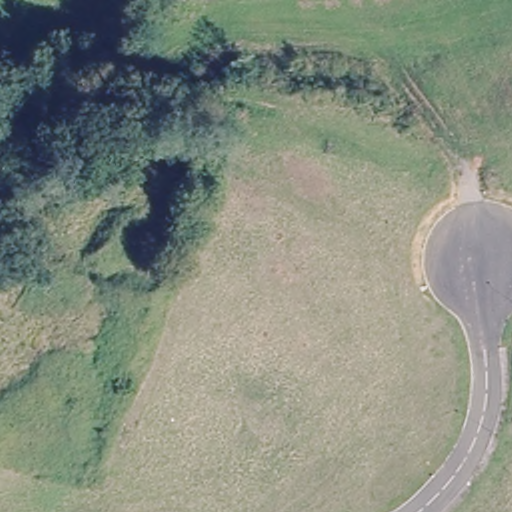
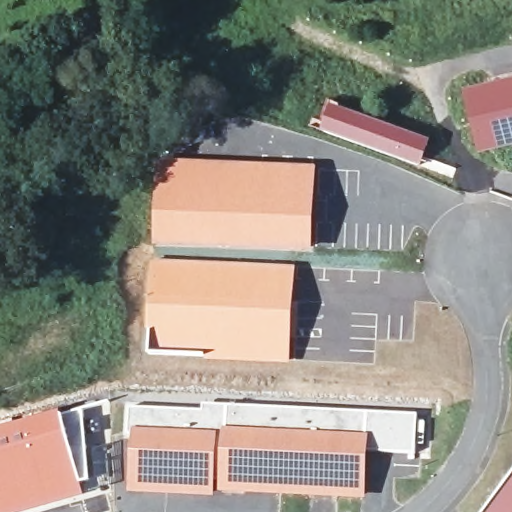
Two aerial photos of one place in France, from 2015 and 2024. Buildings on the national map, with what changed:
new [(512,146),(479,153),(465,90),(512,80),(512,146)]
new [(330,101),(431,139),(421,166),(377,151),(320,129),(330,101)]
new [(155,158),(317,165),(314,251),(154,246),(155,158)]
new [(150,259),(206,260),(296,265),(292,363),(216,359),(217,354),(151,352),(151,330),(147,330),(150,259)]
new [(60,406),(61,412),(107,401),(109,427),(90,427),(90,424),(85,424),(91,481),(83,483),(86,495),(35,512),(0,512),(0,422),(60,406)]
new [(202,409),(202,401),(418,412),(416,453),(369,451),(367,499),(220,492),(220,479),(216,479),(215,498),(129,493),(132,431),(130,431),(130,406),(202,409)]
new [(512,512),(488,512),(512,479),(512,512)]

